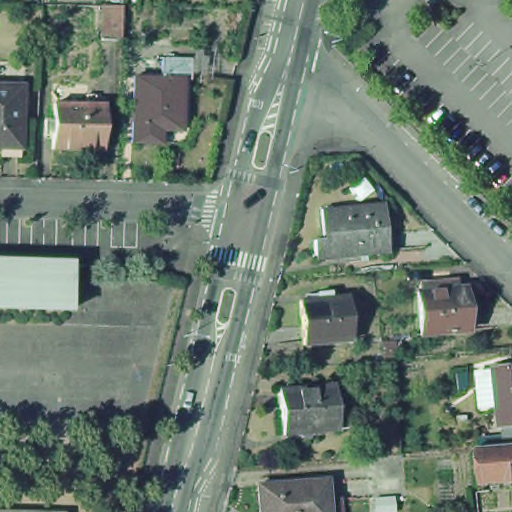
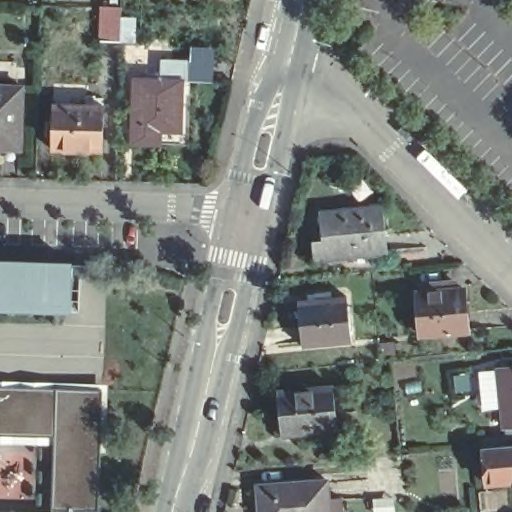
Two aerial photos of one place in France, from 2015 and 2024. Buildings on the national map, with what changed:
unchanged [(206,0),(215,0),(215,2),(206,0)]
unchanged [(121,6),(120,41),(99,40),(100,6),(121,6)]
unchanged [(176,86),(155,85),(156,62),(189,63),(190,47),(214,49),(212,82),(188,81),(187,87),(176,87),(176,86)]
unchanged [(54,85),(86,85),(85,106),(99,107),(97,153),(46,151),(47,131),(40,131),(41,121),(47,121),(48,105),(54,105),(54,85)]
unchanged [(155,85),(176,86),(176,87),(175,137),(155,136),(155,150),(126,149),(128,85),(155,85)]
unchanged [(16,86),(14,150),(0,149),(0,86),(16,86)]
unchanged [(317,243),(314,212),(376,205),(382,256),(309,264),(307,244),(317,243)]
unchanged [(0,313),(0,267),(66,269),(66,270),(66,315),(0,313)]
unchanged [(425,296),(425,289),(442,287),(442,295),(459,293),(462,336),(416,340),(412,297),(425,296)]
unchanged [(312,302),(312,295),(325,295),(325,300),(342,299),(346,340),(298,345),(294,303),(312,302)]
unchanged [(498,405),(480,406),(477,371),(495,370),(495,367),(512,365),(512,426),(500,426),(498,405)]
new [(98,510),(50,508),(54,437),(0,436),(0,388),(102,391),(98,510)]
unchanged [(268,395),(323,389),(327,435),(272,440),(268,395)]
unchanged [(490,446),(512,444),(512,466),(492,468),(490,446)]
unchanged [(325,512),(254,512),(252,485),(322,480),(325,512)]

